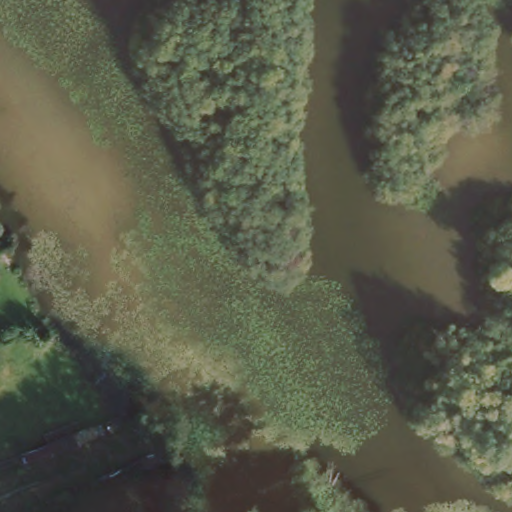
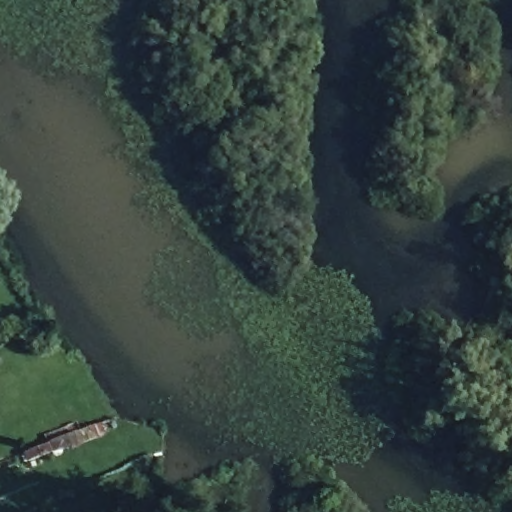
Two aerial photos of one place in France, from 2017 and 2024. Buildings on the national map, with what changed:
unchanged [(43,443),(46,453),(23,461),(19,452),(43,443)]

